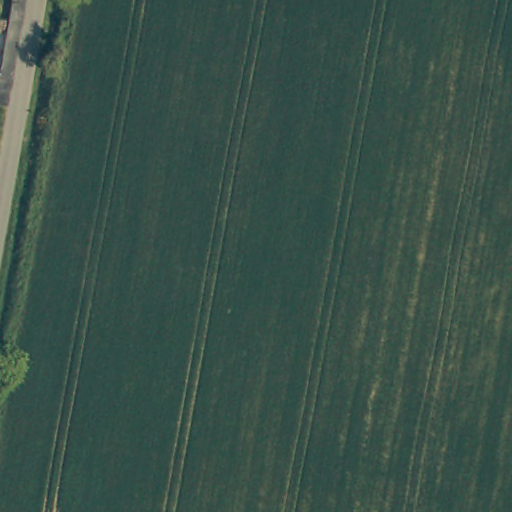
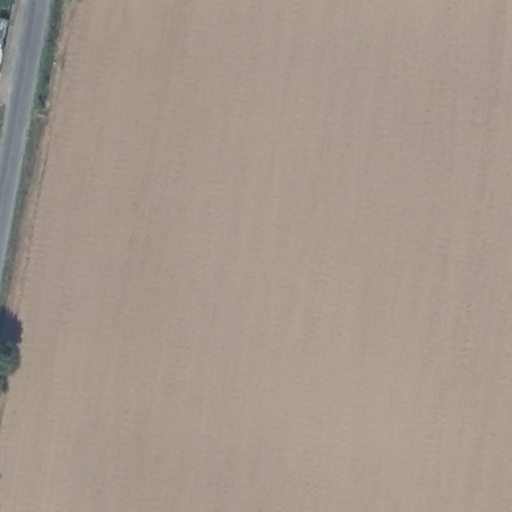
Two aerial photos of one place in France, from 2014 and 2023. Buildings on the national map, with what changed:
[]

